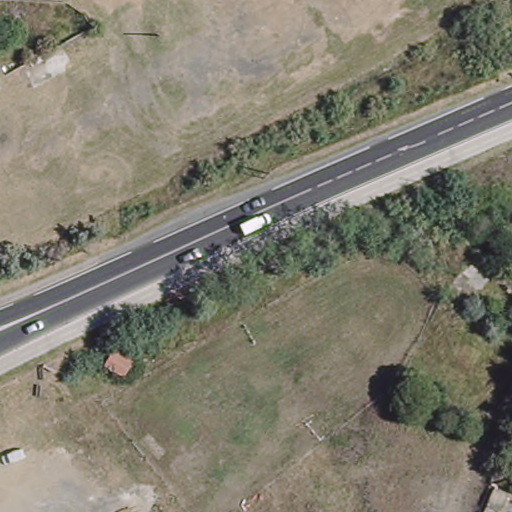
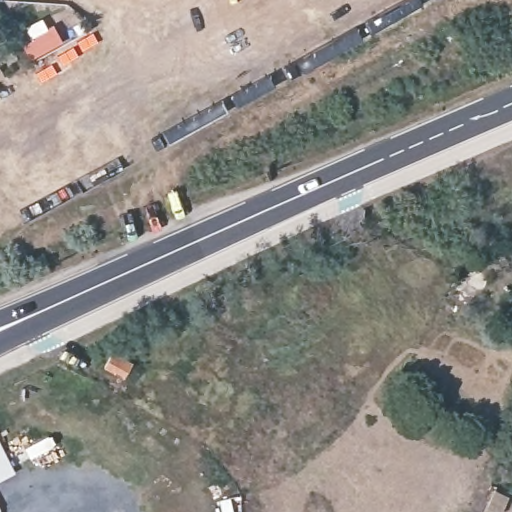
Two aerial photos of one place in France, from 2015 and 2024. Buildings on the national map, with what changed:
unchanged [(0,77),(0,69),(3,75),(0,77)]
unchanged [(425,232),(447,247),(438,257),(418,242),(425,232)]
unchanged [(126,377),(106,366),(112,353),(133,363),(126,377)]
unchanged [(148,432),(170,452),(162,460),(141,441),(148,432)]
new [(0,479),(0,443),(15,472),(0,479)]

